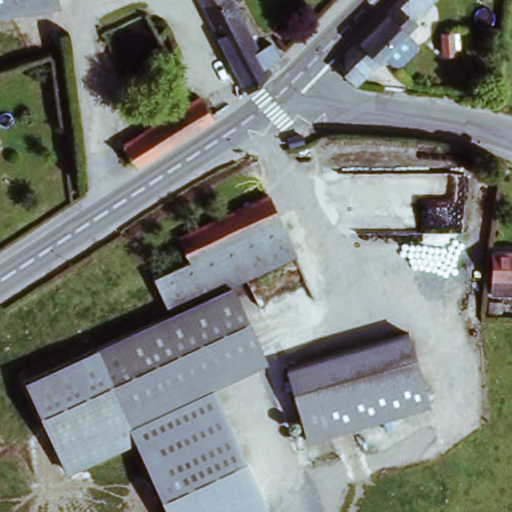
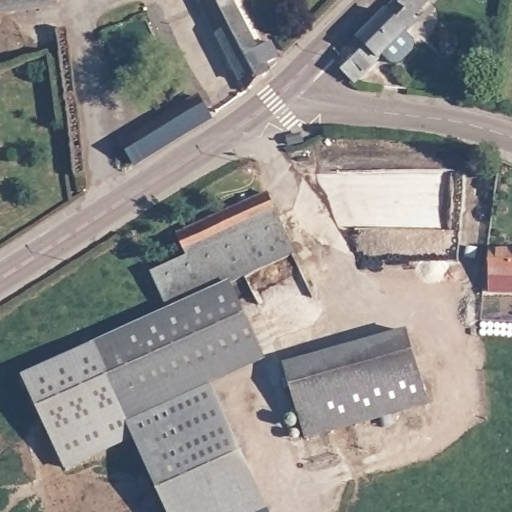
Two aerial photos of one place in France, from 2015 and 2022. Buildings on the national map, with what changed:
unchanged [(34,9),(0,14),(0,0),(54,0),(55,6),(54,7),(34,9)]
unchanged [(275,54),(262,61),(267,69),(245,87),(196,0),(228,0),(254,46),(269,38),(275,54)]
unchanged [(383,66),(371,54),(350,79),(332,67),(333,51),(387,0),(427,0),(388,38),(400,48),(383,66)]
unchanged [(443,26),(445,44),(436,45),(432,27),(443,26)]
unchanged [(135,160),(123,140),(200,94),(212,113),(135,160)]
unchanged [(151,273),(185,257),(175,237),(270,191),(297,253),(232,284),(192,303),(177,309),(170,312),(151,273)]
unchanged [(508,282),(507,292),(491,288),(495,267),(498,245),(512,247),(512,283),(508,282)]
unchanged [(177,309),(192,303),(232,284),(268,361),(212,386),(269,512),(167,512),(133,442),(65,474),(22,380),(170,312),(177,309)]
unchanged [(427,404),(306,440),(285,362),(407,328),(427,404)]

